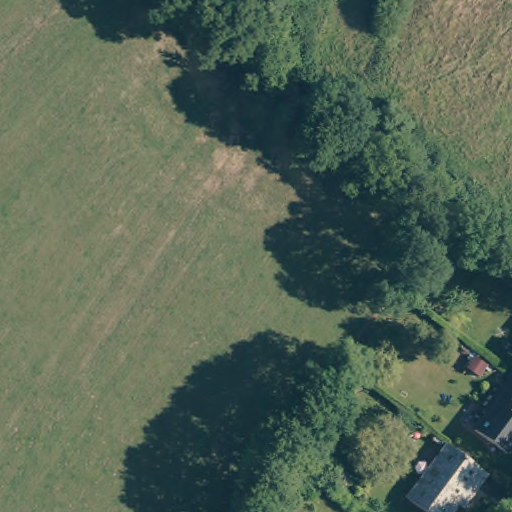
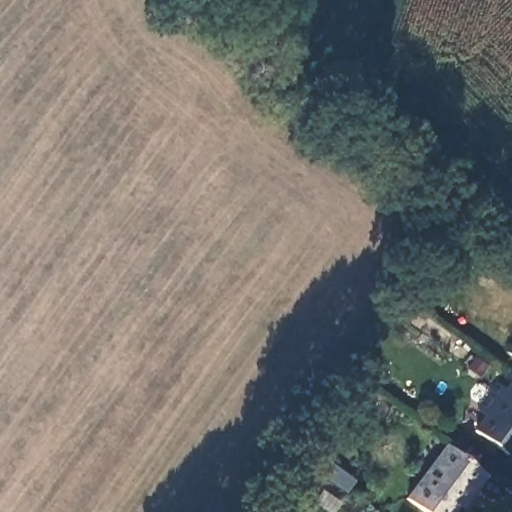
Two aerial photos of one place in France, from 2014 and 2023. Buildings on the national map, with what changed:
unchanged [(505,450),(473,428),(483,413),(476,408),(495,382),(509,390),(512,386),(512,441),(505,450)]
unchanged [(467,500),(459,512),(437,512),(415,495),(453,443),(495,473),(485,489),(473,505),(467,500)]
unchanged [(298,491),(289,483),(298,471),(308,478),(298,491)]

